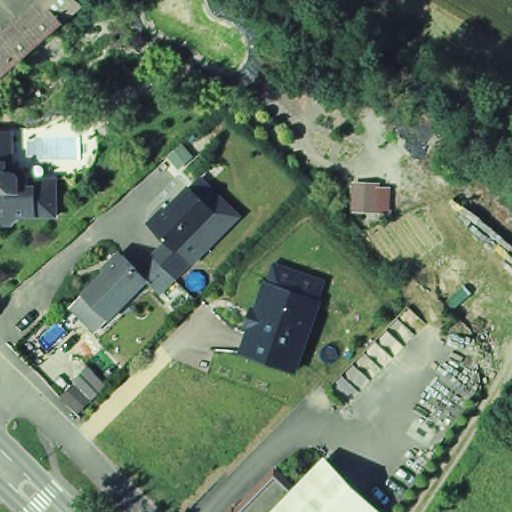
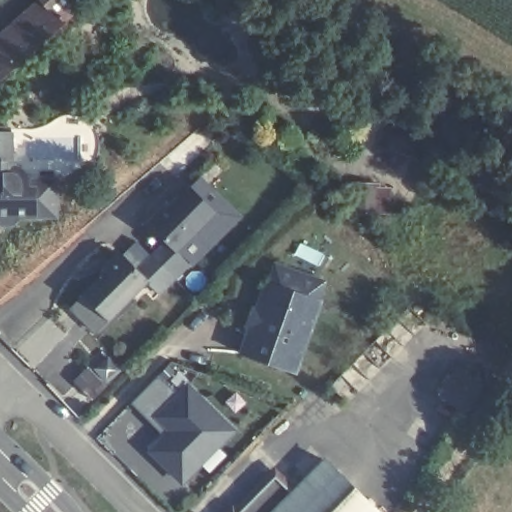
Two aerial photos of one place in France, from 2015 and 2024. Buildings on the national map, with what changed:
unchanged [(45,0),(71,0),(81,11),(68,23),(0,81),(0,80),(0,39),(45,0)]
unchanged [(30,180),(37,181),(37,178),(59,177),(60,214),(22,214),(15,222),(5,222),(0,218),(0,132),(15,132),(15,163),(22,165),(25,168),(28,171),(30,180)]
unchanged [(378,181),(379,210),(351,209),(350,180),(378,181)]
unchanged [(162,287),(150,275),(112,312),(87,288),(126,249),(142,264),(170,236),(154,221),(194,181),(219,205),(181,244),(193,256),(162,287)]
unchanged [(265,277),(269,279),(276,261),(327,277),(322,296),(295,369),(240,349),(265,277)]
unchanged [(88,364),(107,384),(79,412),(60,394),(88,364)]
new [(484,385),(465,413),(438,395),(457,365),(484,385)]
new [(182,487),(145,451),(162,435),(130,403),(160,375),(175,390),(187,377),(240,429),(182,487)]
unchanged [(232,505),(273,464),(295,483),(325,453),(384,512),(223,512),(230,503),(232,505)]

